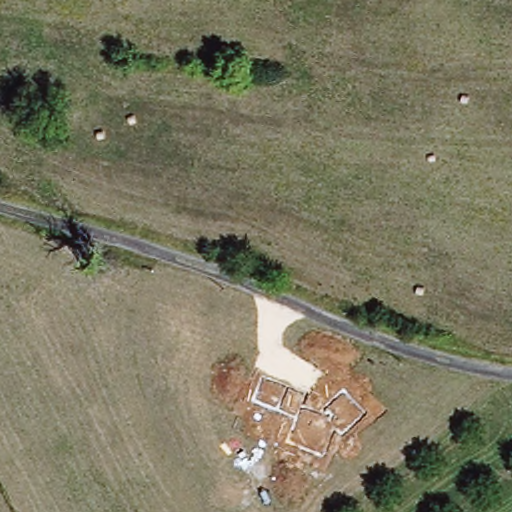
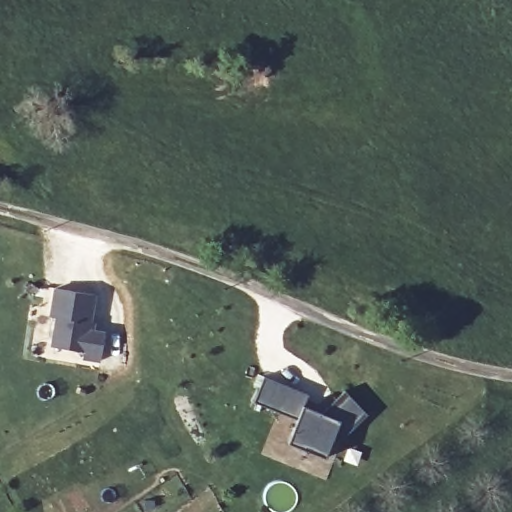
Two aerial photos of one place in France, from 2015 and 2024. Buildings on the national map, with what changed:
new [(58,289),(95,296),(88,332),(108,335),(103,362),(85,359),(86,352),(55,348),(60,318),(53,317),(58,289)]
new [(339,440),(334,433),(324,457),(288,443),(297,418),(251,400),(261,376),(306,394),(303,406),(322,413),(345,391),(365,415),(339,440)]

